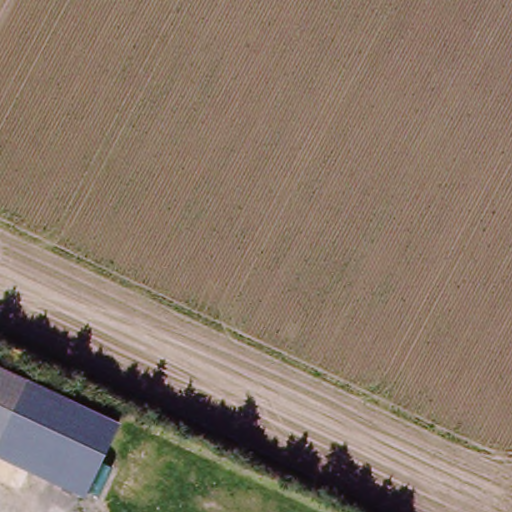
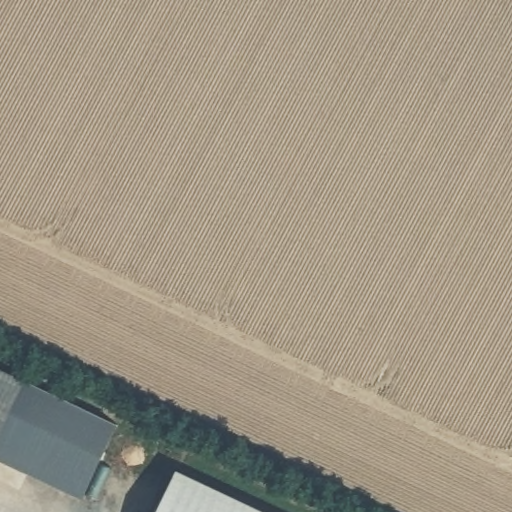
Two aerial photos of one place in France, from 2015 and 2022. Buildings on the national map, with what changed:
unchanged [(0,441),(0,373),(25,384),(0,441)]
unchanged [(0,441),(25,384),(116,426),(85,501),(0,460),(0,441)]
new [(157,512),(177,468),(268,512),(157,512)]

